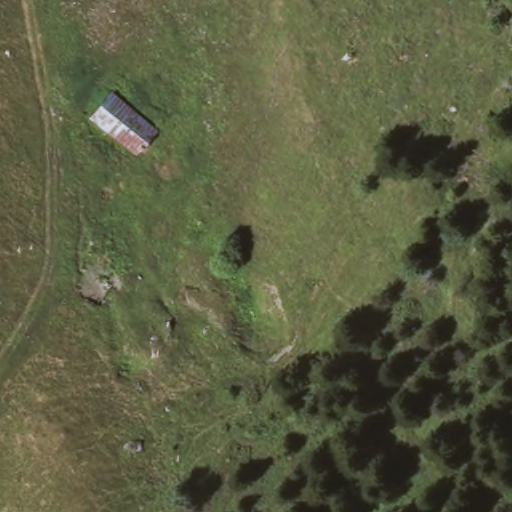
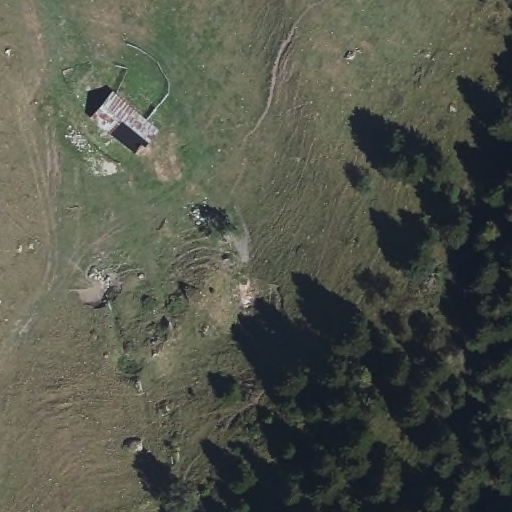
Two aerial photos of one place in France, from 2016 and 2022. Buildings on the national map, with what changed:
unchanged [(77,121),(90,102),(100,87),(153,125),(130,159),(77,121)]

